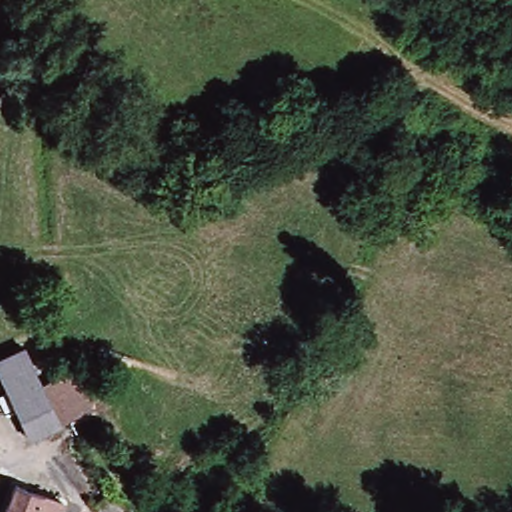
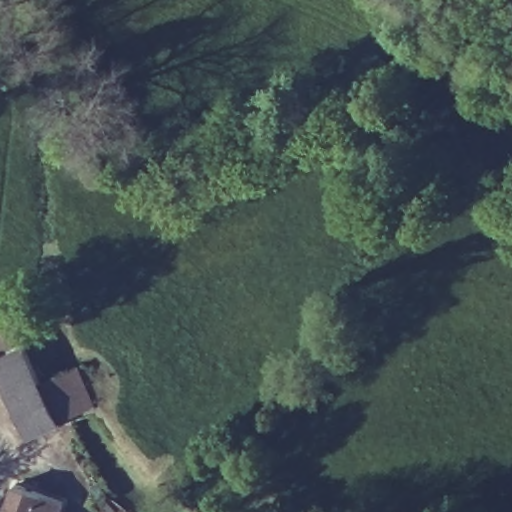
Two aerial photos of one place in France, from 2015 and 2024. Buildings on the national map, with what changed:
unchanged [(0,355),(21,344),(38,381),(10,395),(0,377),(0,355)]
unchanged [(25,429),(10,395),(38,381),(55,373),(75,365),(90,401),(25,429)]
unchanged [(60,503),(57,512),(3,512),(13,485),(60,503)]

